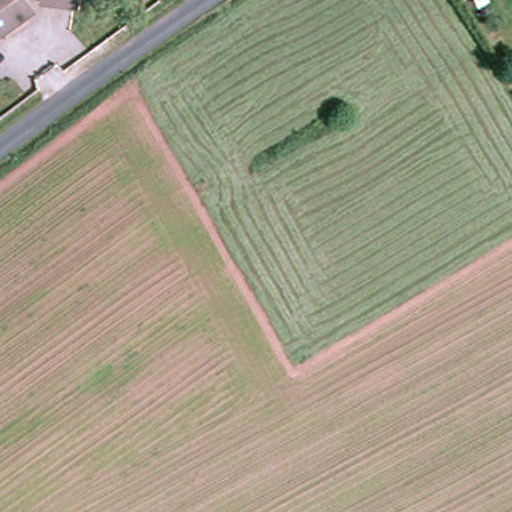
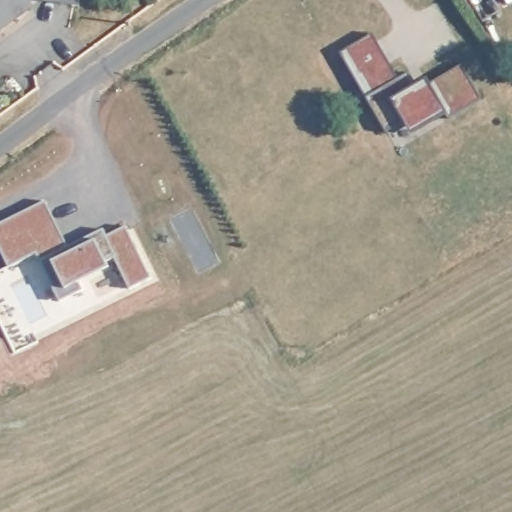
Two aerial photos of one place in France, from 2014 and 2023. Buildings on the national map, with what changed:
unchanged [(23,0),(35,16),(0,40),(0,0),(23,0)]
unchanged [(73,0),(82,0),(82,1),(73,0)]
new [(399,78),(410,72),(417,85),(430,79),(462,64),(480,97),(450,116),(447,114),(412,134),(405,120),(387,130),(368,93),(342,52),(374,35),(399,78)]
new [(69,246),(39,261),(36,255),(10,268),(0,249),(0,225),(47,202),(69,246)]
new [(126,230),(151,277),(129,288),(107,237),(126,230)]
new [(96,242),(108,267),(67,287),(54,262),(96,242)]

